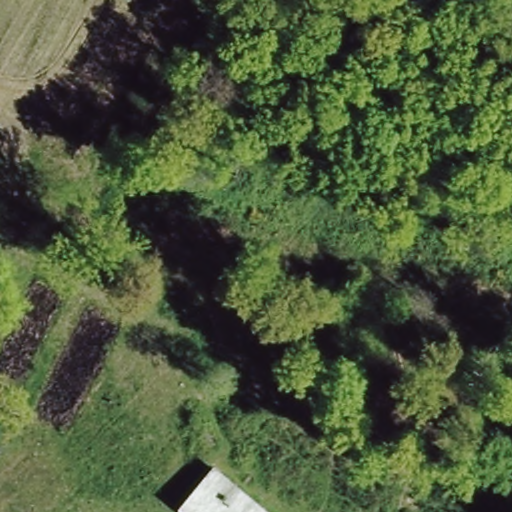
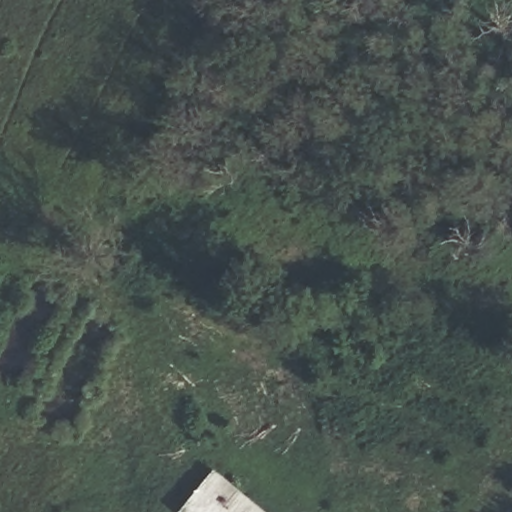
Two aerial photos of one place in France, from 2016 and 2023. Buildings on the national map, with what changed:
unchanged [(212,457),(279,512),(185,512),(175,504),(212,457)]

